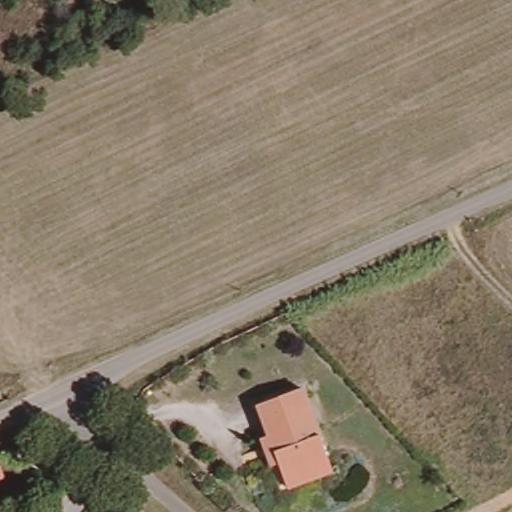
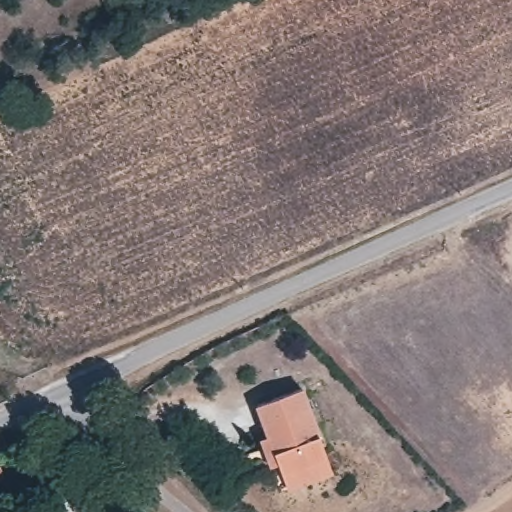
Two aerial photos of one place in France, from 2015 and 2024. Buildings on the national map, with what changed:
unchanged [(337,465),(291,484),(282,462),(274,465),(262,435),(269,432),(257,402),(304,383),(337,465)]
unchanged [(9,480),(0,482),(0,469),(5,468),(9,480)]

